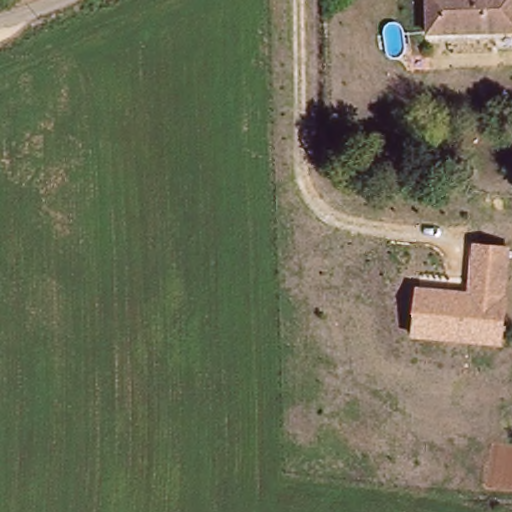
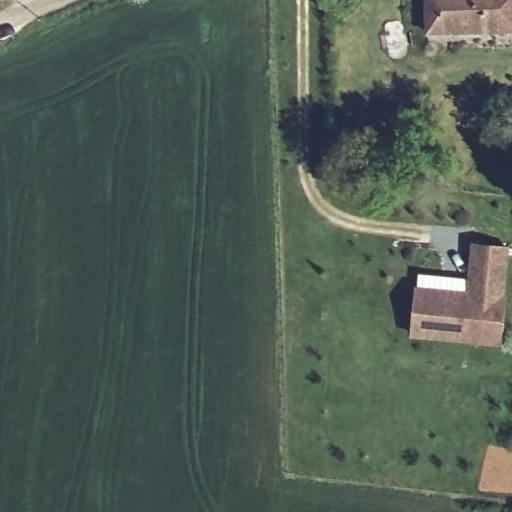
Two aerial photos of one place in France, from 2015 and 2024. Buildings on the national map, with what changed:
unchanged [(512,0),(512,33),(426,34),(426,0),(512,0)]
unchanged [(416,286),(468,292),(472,243),(512,247),(512,263),(507,346),(413,339),(416,286)]

